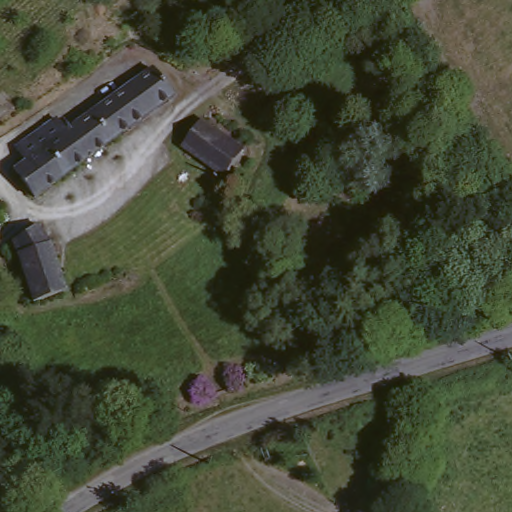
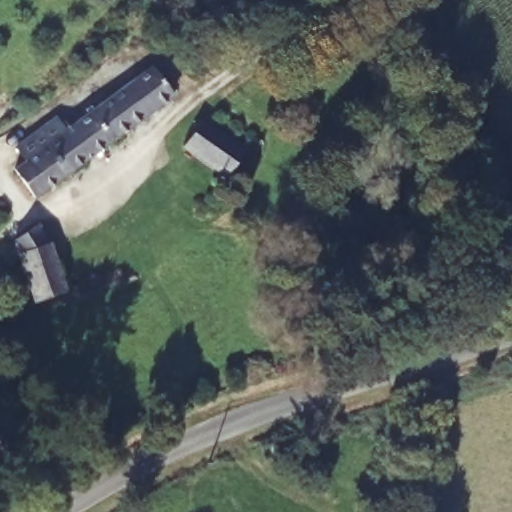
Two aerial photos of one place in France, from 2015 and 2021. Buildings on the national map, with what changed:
unchanged [(90,118),(151,72),(174,102),(109,147),(90,118)]
unchanged [(35,202),(14,173),(22,165),(14,153),(55,123),(66,136),(90,118),(109,147),(35,202)]
unchanged [(205,124),(245,153),(225,183),(184,153),(204,120),(205,124)]
unchanged [(67,292),(35,307),(11,246),(34,232),(52,256),(67,292)]

